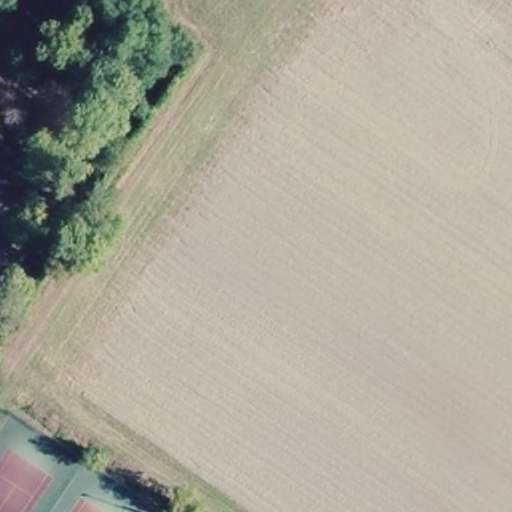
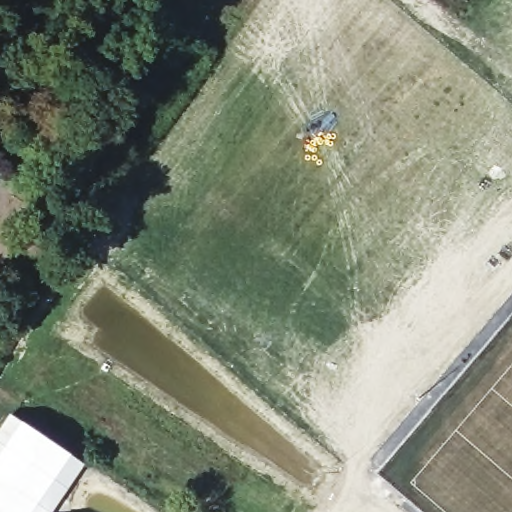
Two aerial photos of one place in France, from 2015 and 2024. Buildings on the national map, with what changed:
new [(10,413),(86,464),(55,512),(0,512),(0,427),(10,413)]

